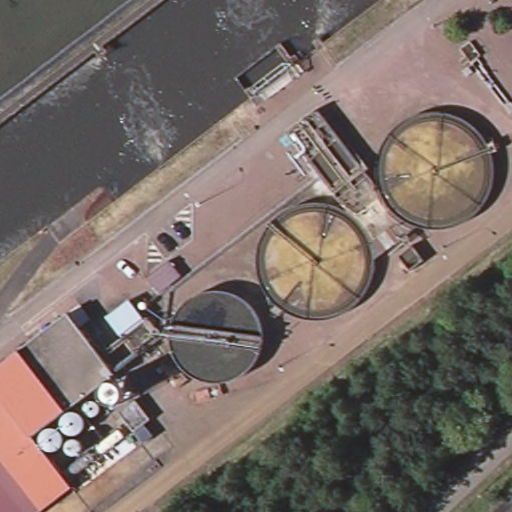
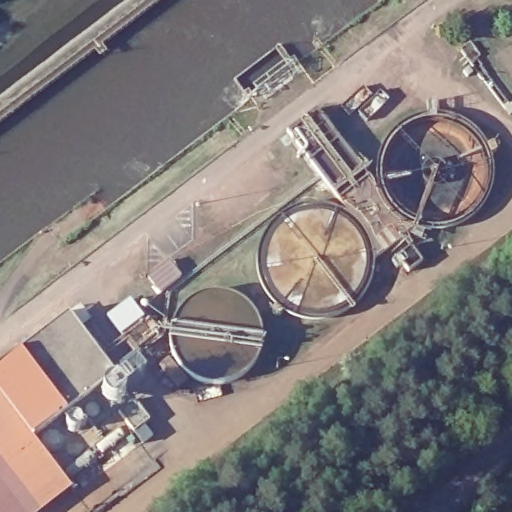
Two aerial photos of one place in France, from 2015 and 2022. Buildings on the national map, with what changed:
unchanged [(320,106),(374,181),(385,185),(387,195),(397,209),(415,220),(369,257),(368,248),(359,227),(345,215),(286,132),(320,106)]
unchanged [(106,355),(105,386),(90,396),(106,416),(85,432),(92,448),(67,470),(77,487),(45,512),(0,512),(0,364),(70,311),(106,355)]

